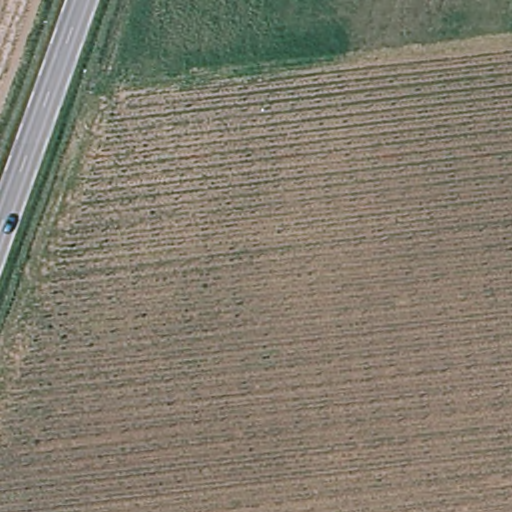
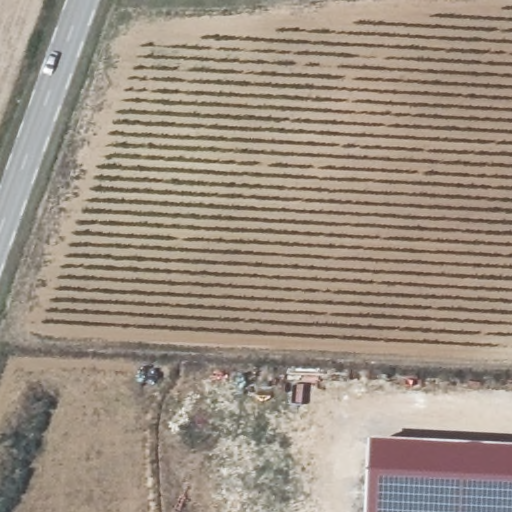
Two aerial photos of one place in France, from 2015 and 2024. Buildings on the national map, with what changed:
new [(512,447),(512,512),(365,512),(369,441),(512,447)]

